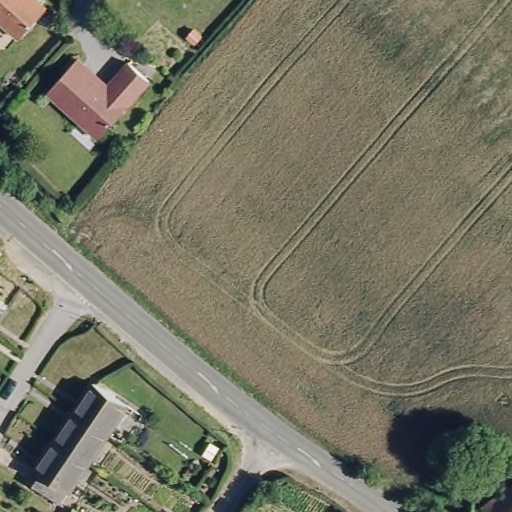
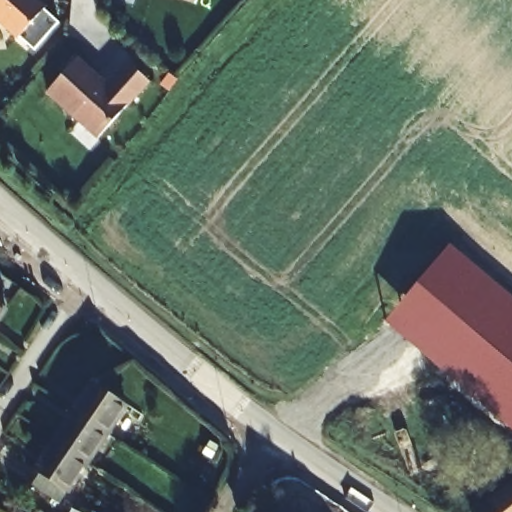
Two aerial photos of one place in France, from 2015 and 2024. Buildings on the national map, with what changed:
unchanged [(15,41),(0,27),(0,0),(29,0),(42,11),(15,41)]
new [(167,52),(158,45),(167,35),(175,42),(167,52)]
unchanged [(122,63),(147,87),(93,143),(42,96),(76,59),(103,82),(122,63)]
new [(512,296),(512,430),(385,321),(450,243),(512,296)]
unchanged [(5,304),(0,311),(0,300),(5,304)]
unchanged [(73,412),(93,382),(126,405),(107,434),(73,412)]
unchanged [(73,412),(107,434),(87,463),(54,440),(73,412)]
unchanged [(59,505),(25,482),(54,440),(87,463),(59,505)]
unchanged [(512,484),(512,512),(475,512),(512,484)]
unchanged [(72,509),(78,512),(71,512),(72,509)]

